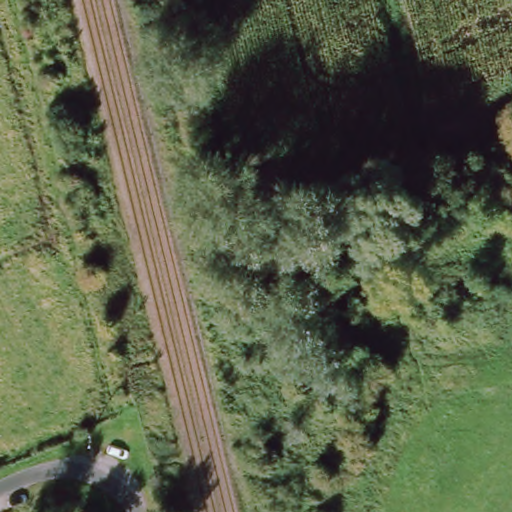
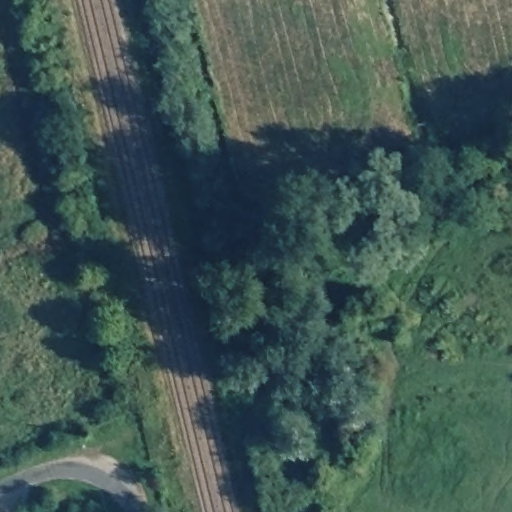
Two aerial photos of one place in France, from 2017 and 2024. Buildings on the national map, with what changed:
[]

